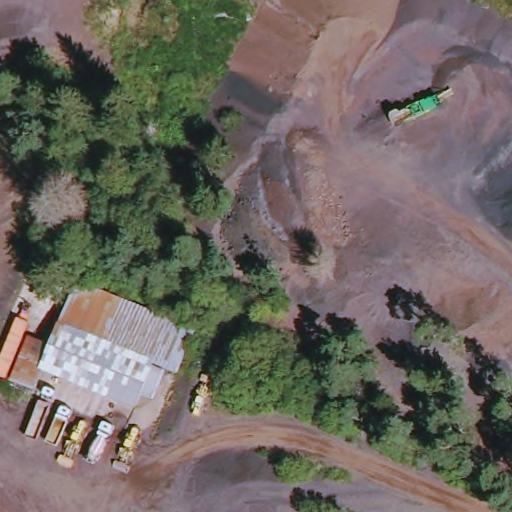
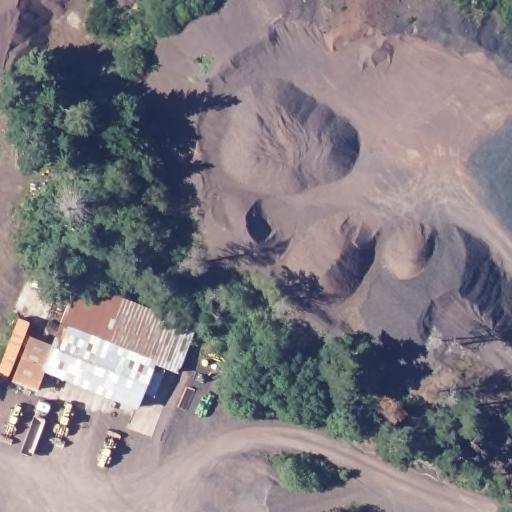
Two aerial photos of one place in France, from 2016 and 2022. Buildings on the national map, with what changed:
unchanged [(30,339),(51,346),(82,279),(199,327),(181,375),(159,366),(143,411),(47,376),(42,395),(13,385),(30,339)]
unchanged [(0,363),(17,319),(28,323),(23,336),(30,339),(13,385),(0,380),(0,363)]

